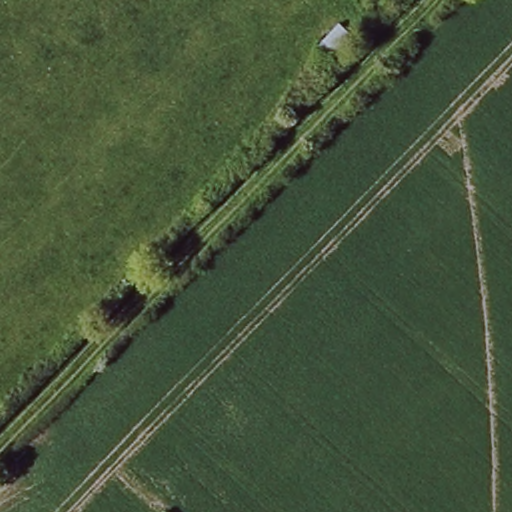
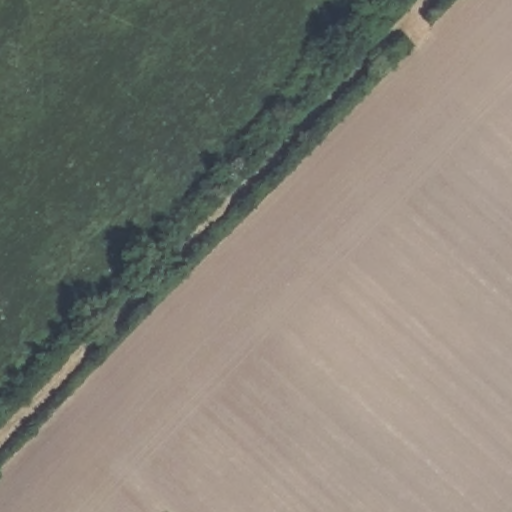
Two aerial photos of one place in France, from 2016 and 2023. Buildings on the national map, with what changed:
unchanged [(339,22),(359,40),(338,64),(319,46),(339,22)]

